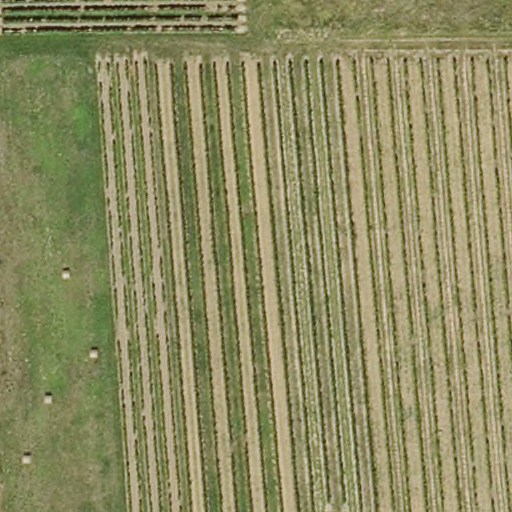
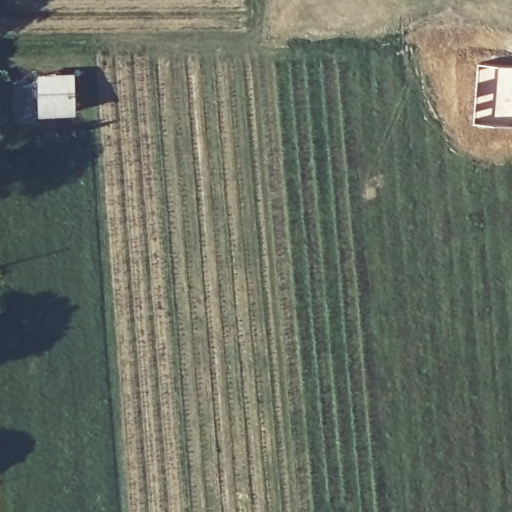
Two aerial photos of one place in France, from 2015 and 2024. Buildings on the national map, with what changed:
new [(477,62),(512,64),(512,125),(474,122),(477,62)]
new [(75,72),(76,112),(37,115),(36,73),(75,72)]

